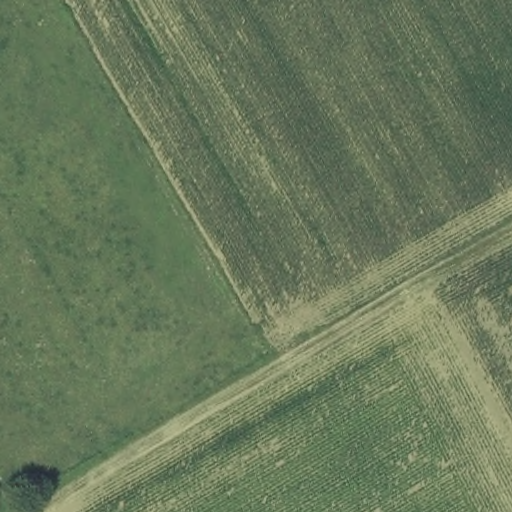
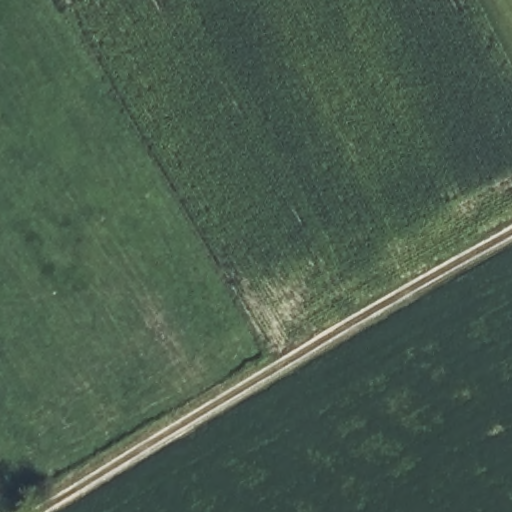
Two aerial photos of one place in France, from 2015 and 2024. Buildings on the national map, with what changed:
[]

